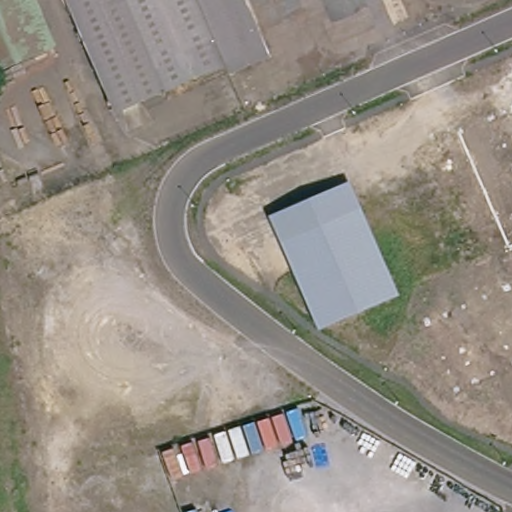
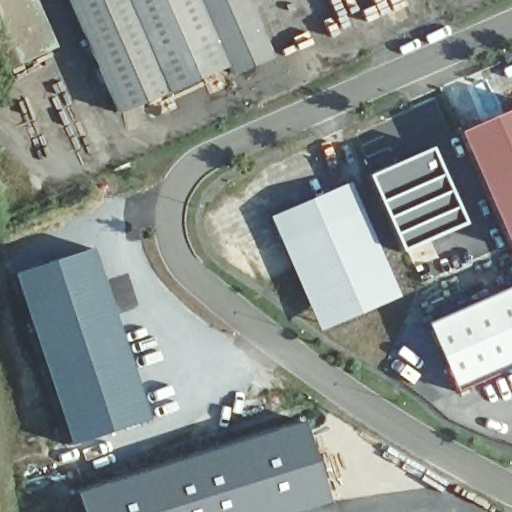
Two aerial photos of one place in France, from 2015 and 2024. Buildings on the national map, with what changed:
unchanged [(0,77),(0,0),(23,0),(47,57),(0,77)]
unchanged [(124,115),(75,0),(201,0),(230,69),(124,115)]
unchanged [(237,77),(204,0),(249,0),(275,60),(237,77)]
unchanged [(452,133),(487,117),(498,113),(512,107),(512,256),(509,249),(504,251),(452,133)]
new [(431,145),(465,224),(399,252),(363,175),(431,145)]
unchanged [(355,184),(401,294),(330,324),(284,215),(355,184)]
new [(92,245),(130,355),(147,420),(68,445),(11,272),(92,245)]
unchanged [(422,325),(512,286),(512,368),(452,394),(422,325)]
new [(200,451),(262,430),(303,418),(327,503),(300,512),(79,512),(73,491),(200,451)]

